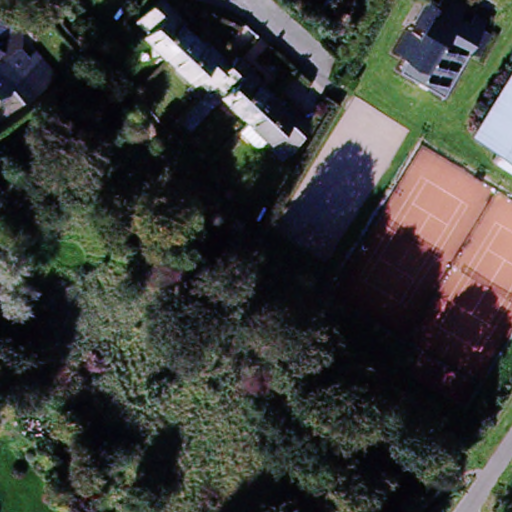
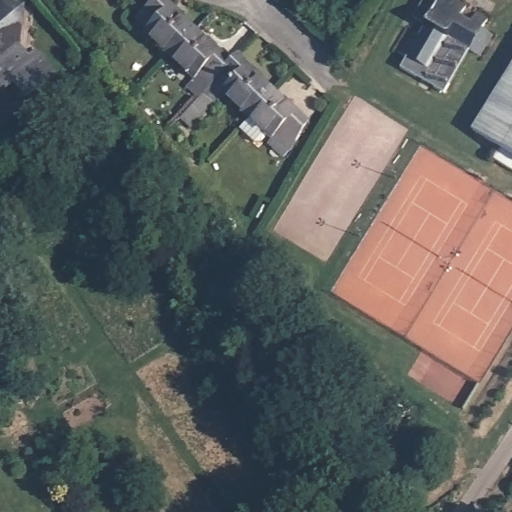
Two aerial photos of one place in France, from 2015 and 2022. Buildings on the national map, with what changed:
unchanged [(157,43),(161,38),(138,18),(155,0),(163,0),(182,17),(178,20),(190,30),(169,52),(157,43)]
unchanged [(406,66),(411,55),(401,49),(411,26),(424,32),(429,21),(418,16),(426,0),(471,0),(463,14),(473,18),(480,4),(495,12),(487,27),(495,31),(485,50),(473,45),(450,89),(406,66)]
unchanged [(203,41),(206,37),(229,57),(205,83),(169,52),(190,30),(203,41)]
unchanged [(0,82),(0,45),(20,65),(29,57),(40,67),(45,63),(55,73),(23,92),(18,86),(7,76),(0,82)]
unchanged [(234,108),(238,103),(222,89),(217,94),(205,83),(229,57),(254,78),(250,81),(263,92),(242,115),(234,108)]
unchanged [(512,65),(512,155),(470,132),(512,65)]
unchanged [(303,120),(283,141),(260,122),(255,126),(242,115),(263,92),(277,104),(280,100),(303,120)]

